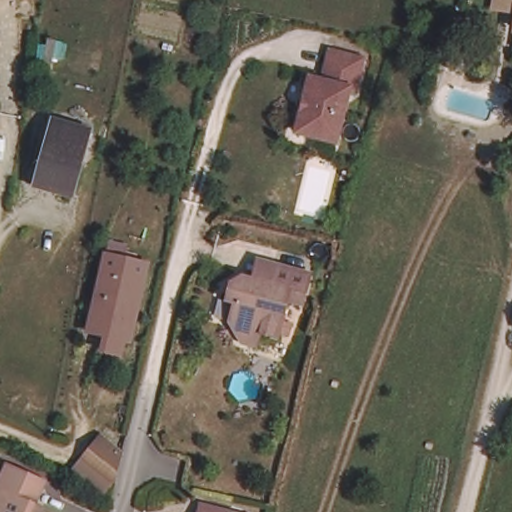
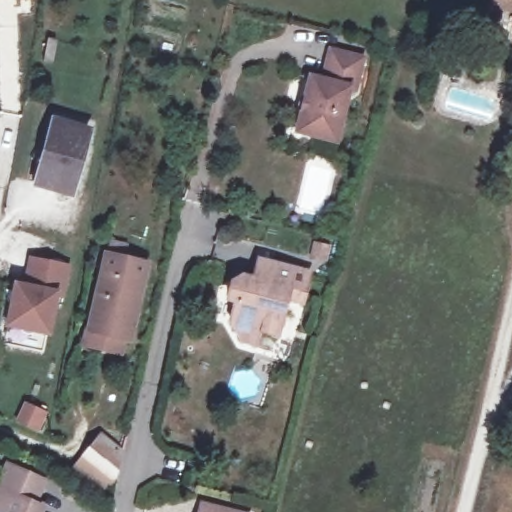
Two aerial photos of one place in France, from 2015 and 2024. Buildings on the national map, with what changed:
unchanged [(13,0),(31,0),(31,3),(13,0)]
unchanged [(499,11),(492,9),(494,0),(512,0),(512,14),(499,11)]
unchanged [(507,50),(512,31),(512,52),(507,50)]
unchanged [(367,62),(359,93),(352,92),(336,144),(298,133),(314,79),(327,83),(336,54),(367,62)]
unchanged [(82,130),(69,193),(38,185),(55,124),(82,130)]
unchanged [(147,258),(131,332),(122,331),(119,347),(98,341),(102,326),(90,323),(106,249),(147,258)]
new [(29,257),(70,265),(65,298),(59,297),(51,337),(5,327),(14,281),(25,283),(29,257)]
unchanged [(313,276),(307,294),(292,288),(277,336),(261,330),(242,339),(231,319),(239,299),(229,296),(234,281),(246,275),(256,278),(263,258),(280,266),(281,264),(313,276)]
unchanged [(120,451),(114,476),(109,475),(107,493),(75,472),(97,438),(120,451)]
unchanged [(37,477),(35,483),(43,487),(35,505),(42,509),(40,512),(0,512),(0,483),(9,464),(37,477)]
unchanged [(203,506),(225,512),(201,512),(203,506)]

